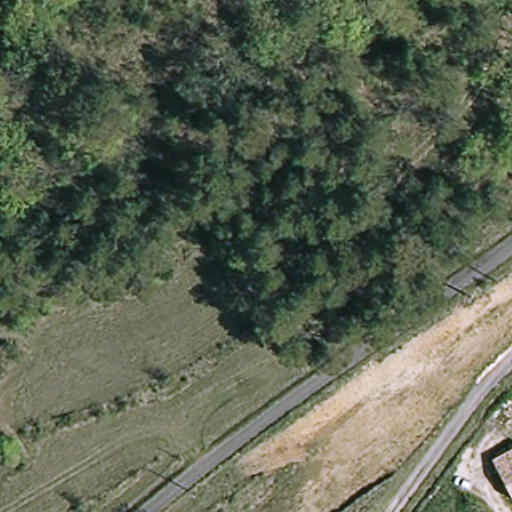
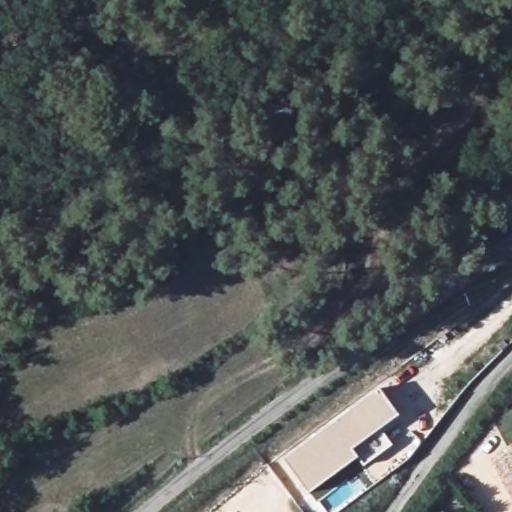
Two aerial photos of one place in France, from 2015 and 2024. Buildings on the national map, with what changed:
new [(365,463),(356,451),(309,487),(283,455),(378,384),(397,410),(379,423),(393,442),(365,463)]
unchanged [(512,445),(512,493),(490,461),(512,445)]

